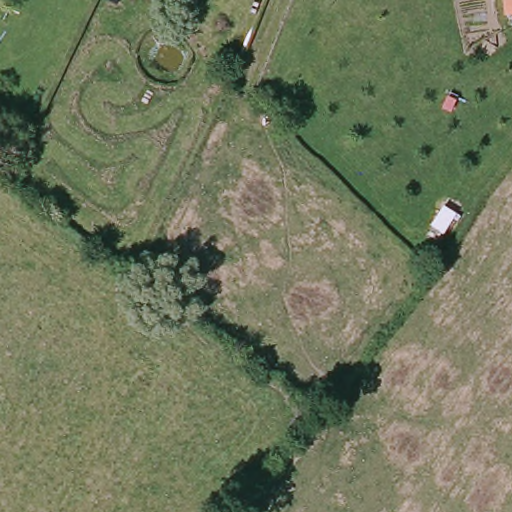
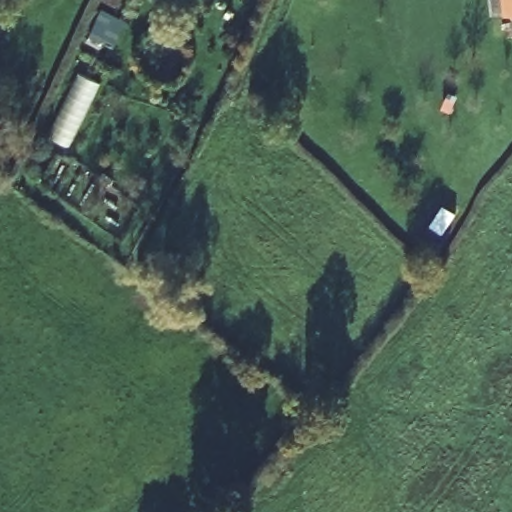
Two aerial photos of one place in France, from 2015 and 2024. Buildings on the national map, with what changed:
unchanged [(512,17),(506,18),(504,0),(512,0),(512,17)]
new [(68,144),(51,135),(81,73),(99,81),(68,144)]

